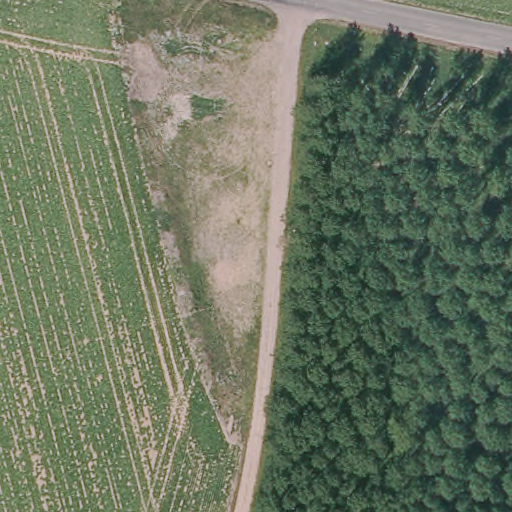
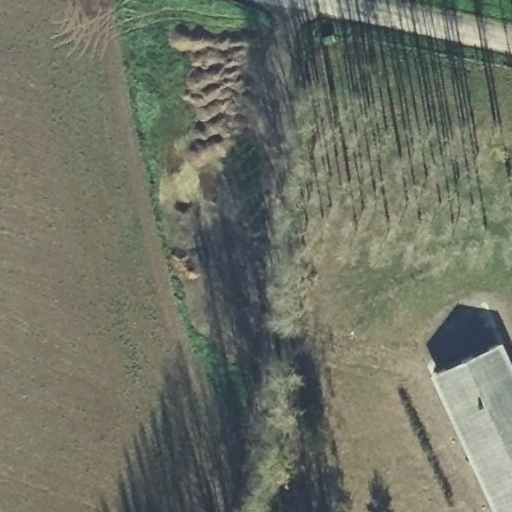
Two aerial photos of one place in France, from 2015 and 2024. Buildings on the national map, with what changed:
new [(507,345),(512,356),(512,512),(508,512),(445,373),(507,345)]

